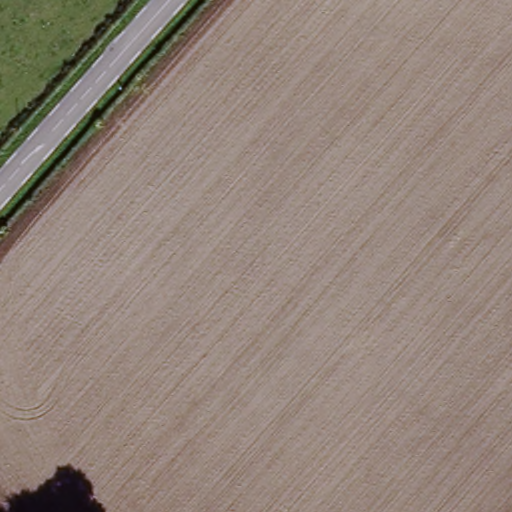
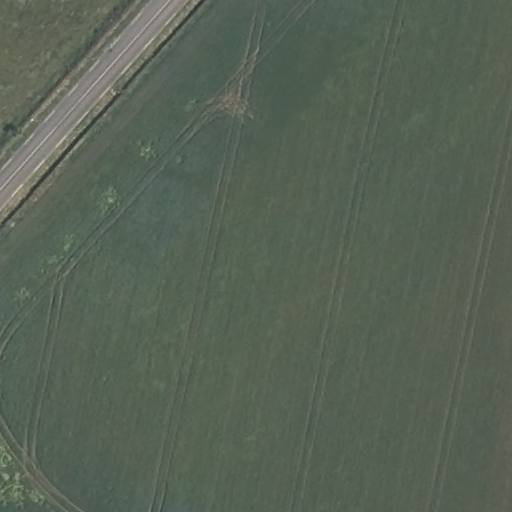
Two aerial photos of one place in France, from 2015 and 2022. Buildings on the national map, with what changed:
[]

